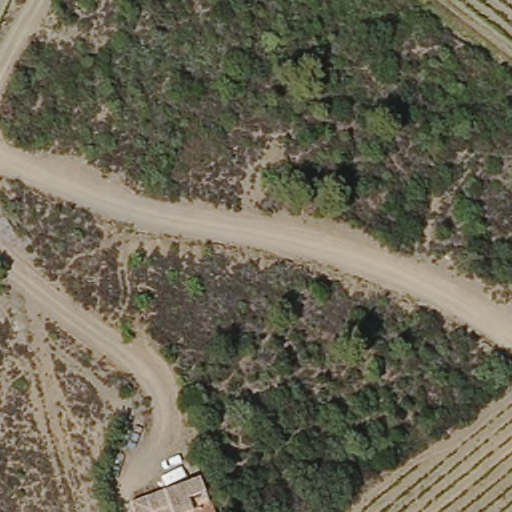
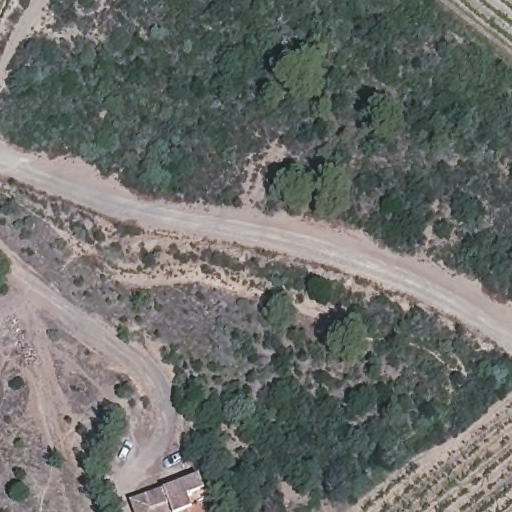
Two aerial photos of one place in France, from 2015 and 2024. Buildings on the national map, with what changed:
unchanged [(174,512),(147,512),(141,492),(199,475),(206,503),(174,512)]
unchanged [(209,512),(174,512),(206,503),(209,512)]

